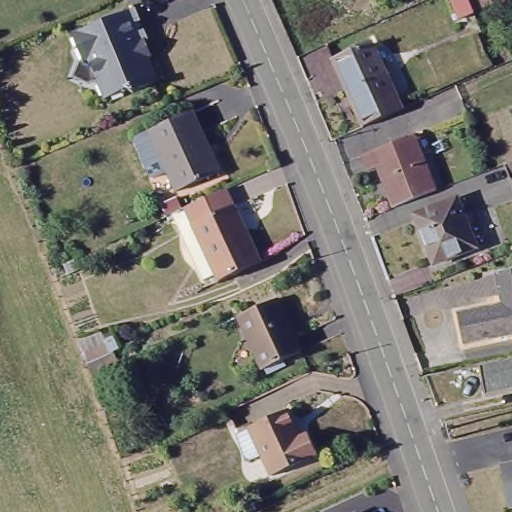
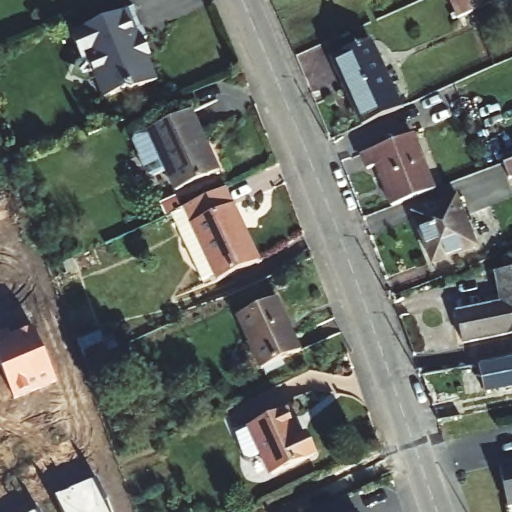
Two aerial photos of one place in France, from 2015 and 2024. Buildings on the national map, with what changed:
unchanged [(458,17),(450,0),(467,0),(472,12),(458,17)]
unchanged [(66,36),(129,11),(143,46),(133,50),(84,70),(80,72),(66,36)]
unchanged [(344,80),(359,72),(349,49),(373,38),(400,100),(360,117),(344,80)]
unchanged [(138,91),(128,96),(126,93),(99,102),(84,70),(133,50),(138,61),(143,59),(148,70),(154,84),(138,91)]
unchanged [(166,166),(151,172),(138,142),(151,136),(151,135),(192,115),(211,157),(213,156),(221,175),(178,195),(166,166)]
unchanged [(374,165),(366,169),(360,152),(411,134),(433,190),(399,202),(391,205),(374,165)]
unchanged [(508,179),(502,164),(512,160),(512,177),(508,179)]
unchanged [(238,215),(231,217),(238,232),(245,230),(258,261),(214,278),(183,206),(225,187),(238,215)]
unchanged [(412,214),(456,197),(464,218),(462,220),(469,240),(473,247),(431,264),(430,261),(412,214)]
unchanged [(464,342),(457,311),(500,301),(494,272),(512,269),(512,332),(464,342)]
unchanged [(296,351),(257,367),(235,315),(274,299),(296,351)]
new [(0,400),(0,334),(0,336),(20,328),(46,386),(2,406),(0,400)]
unchanged [(80,348),(106,340),(118,363),(90,374),(80,348)]
unchanged [(512,355),(512,382),(484,387),(482,362),(512,355)]
unchanged [(300,438),(307,436),(316,456),(274,475),(253,427),(289,411),(300,438)]
unchanged [(512,464),(512,508),(509,509),(499,467),(512,464)]
new [(54,512),(48,498),(91,478),(105,512),(54,512)]
unchanged [(359,512),(361,511),(362,512),(359,512)]

